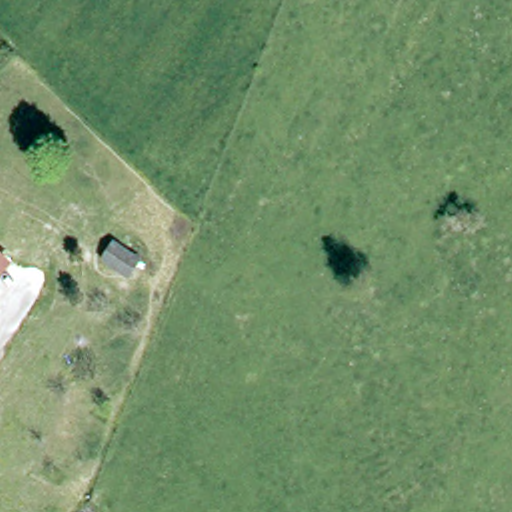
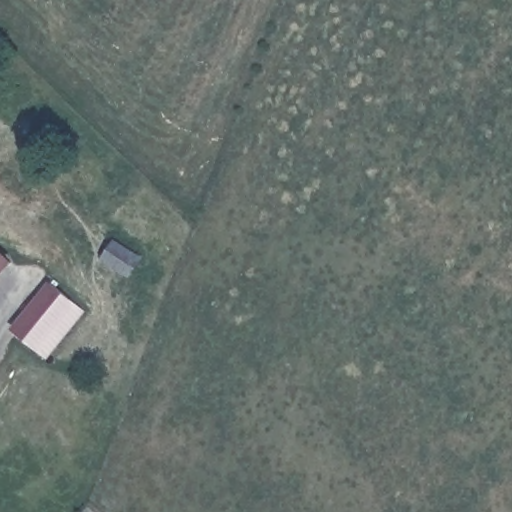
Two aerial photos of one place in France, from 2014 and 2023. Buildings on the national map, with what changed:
new [(0,275),(0,251),(12,262),(0,275)]
new [(46,358),(10,330),(47,281),(84,310),(46,358)]

